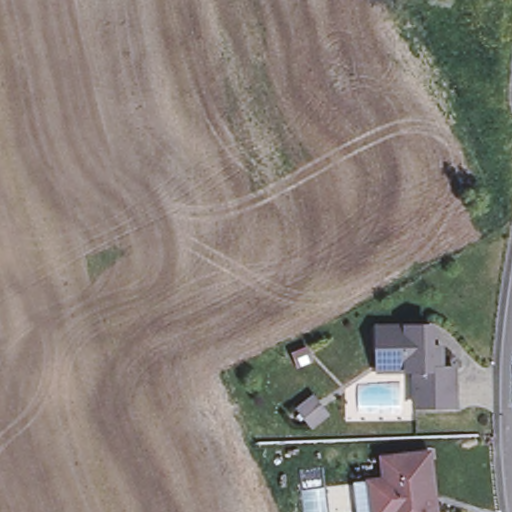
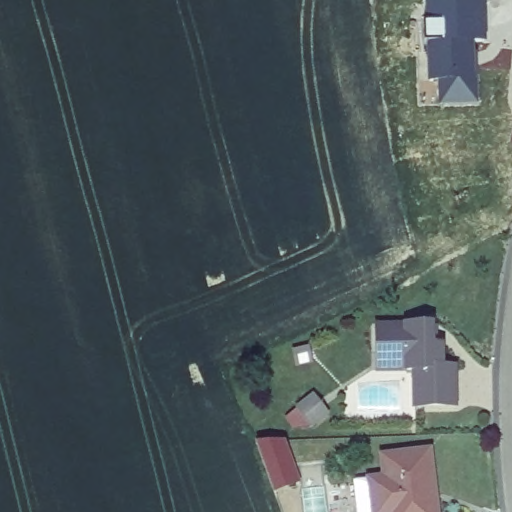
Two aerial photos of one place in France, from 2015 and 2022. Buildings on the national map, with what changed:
new [(487,40),(475,40),(479,101),(439,102),(438,80),(429,80),(427,39),(426,0),(486,0),(487,40)]
unchanged [(430,326),(430,346),(441,347),(441,368),(454,368),(453,405),(415,405),(414,370),(406,370),(378,370),(378,353),(378,327),(430,326)]
new [(287,439),(302,481),(275,490),(256,440),(287,439)]
unchanged [(385,456),(433,451),(437,494),(432,495),(435,512),(383,512),(375,505),(372,482),(372,480),(387,479),(385,456)]
unchanged [(375,505),(383,512),(357,512),(355,485),(372,482),(375,505)]

